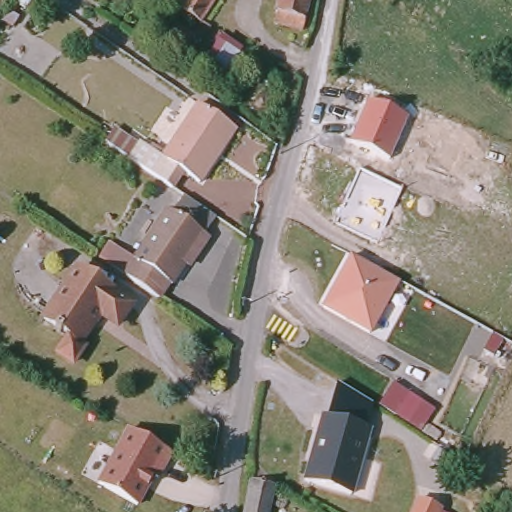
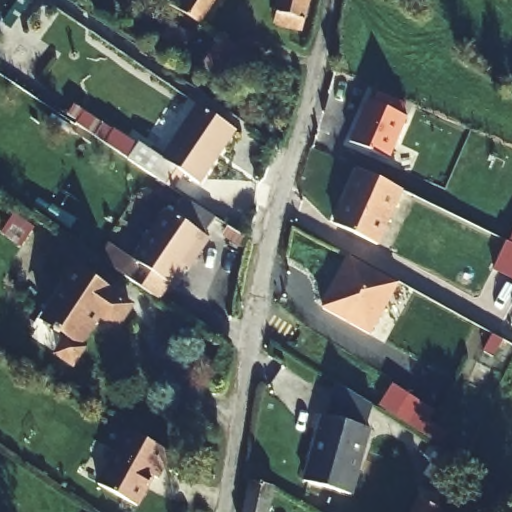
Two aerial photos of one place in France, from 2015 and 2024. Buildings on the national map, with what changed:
unchanged [(170,10),(177,0),(218,0),(199,28),(170,10)]
unchanged [(300,34),(275,29),(281,0),(307,0),(300,34)]
unchanged [(242,63),(222,92),(192,72),(212,43),(242,63)]
unchanged [(408,117),(390,160),(350,142),(367,102),(408,117)]
unchanged [(160,158),(199,104),(230,127),(209,157),(214,162),(197,185),(184,174),(171,191),(125,158),(137,142),(160,158)]
unchanged [(401,191),(377,244),(335,224),(360,170),(401,191)]
unchanged [(130,261),(165,212),(209,243),(194,267),(188,263),(171,288),(167,285),(155,302),(122,278),(100,264),(112,246),(130,261)]
new [(512,279),(494,271),(507,243),(512,246),(512,279)]
unchanged [(400,283),(370,335),(322,308),(350,256),(400,283)]
unchanged [(77,273),(127,308),(114,329),(97,317),(78,344),(84,349),(71,367),(55,356),(67,341),(42,323),(77,273)]
unchanged [(437,410),(421,432),(378,405),(394,382),(437,410)]
unchanged [(329,415),(337,383),(374,405),(370,428),(329,415)]
unchanged [(302,477),(321,413),(370,428),(350,491),(302,477)]
unchanged [(157,477),(139,507),(97,484),(127,428),(174,455),(162,479),(157,477)]
unchanged [(457,453),(449,466),(427,453),(435,439),(457,453)]
unchanged [(275,512),(229,512),(232,497),(235,480),(280,489),(275,512)]
unchanged [(447,512),(412,512),(419,499),(447,512)]

